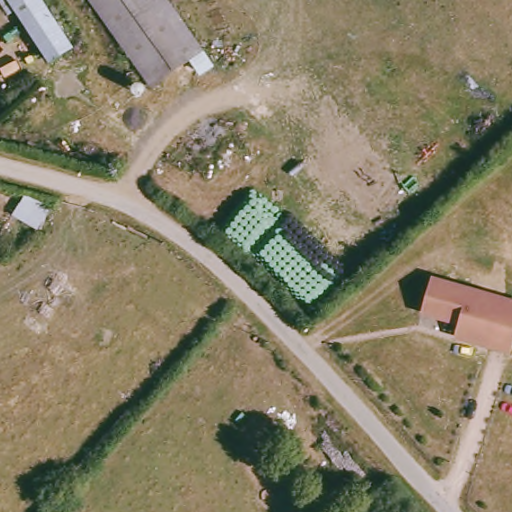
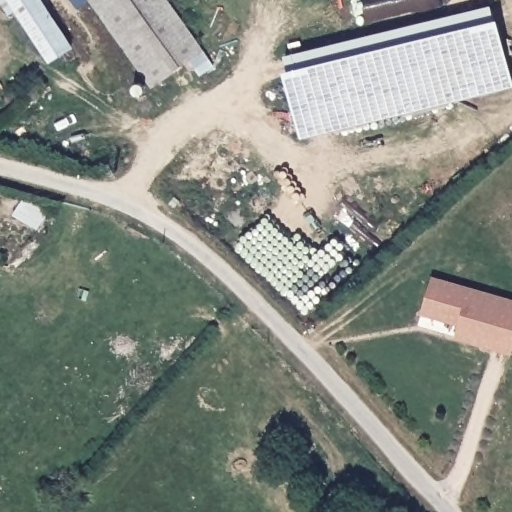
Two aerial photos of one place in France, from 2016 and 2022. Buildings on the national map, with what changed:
unchanged [(45,61),(3,0),(39,0),(69,45),(45,61)]
unchanged [(195,74),(185,61),(147,86),(87,0),(159,0),(206,66),(195,74)]
new [(289,70),(285,55),(489,6),(512,81),(512,86),(303,136),(285,71),(289,70)]
unchanged [(427,274),(512,297),(512,328),(507,347),(451,332),(455,318),(443,315),(417,308),(427,274)]

